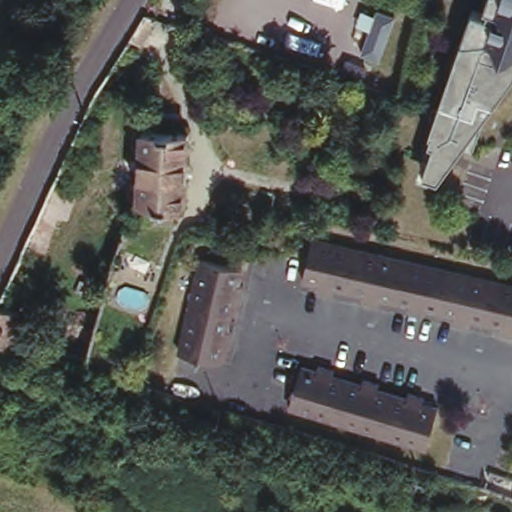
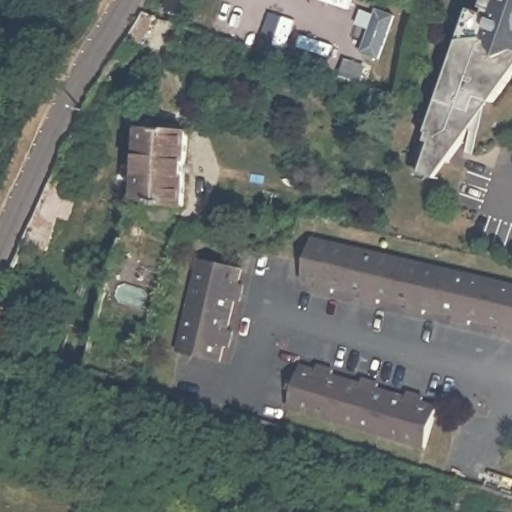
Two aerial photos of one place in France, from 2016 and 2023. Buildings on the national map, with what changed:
unchanged [(440,145),(434,143),(440,120),(433,118),(435,108),(444,110),(458,57),(465,59),(470,41),(465,39),(474,9),(487,13),(490,7),(486,6),(488,0),(512,0),(512,84),(505,93),(478,137),(465,157),(457,183),(432,176),(439,149),(440,145)]
unchanged [(152,25),(141,41),(130,33),(146,10),(153,12),(152,25)]
unchanged [(330,51),(353,58),(348,75),(325,67),(330,51)]
unchanged [(186,207),(133,205),(137,130),(190,132),(186,207)]
unchanged [(90,172),(67,220),(56,215),(42,247),(27,241),(46,198),(64,160),(90,172)]
unchanged [(315,241),(512,283),(512,332),(503,330),(505,323),(466,315),(465,322),(448,318),(450,311),(410,302),(409,310),(394,307),(395,300),(355,292),(355,299),(338,296),(340,289),(307,283),(315,241)]
unchanged [(204,259),(244,269),(240,285),(246,287),(241,304),(235,302),(228,330),(233,332),(229,348),(224,347),(220,362),(180,351),(204,259)]
unchanged [(10,344),(0,341),(0,300),(20,310),(10,344)]
unchanged [(295,375),(313,378),(313,371),(331,373),(331,380),(360,385),(360,378),(380,381),(378,388),(407,392),(408,386),(426,389),(425,395),(440,397),(433,439),(290,417),(295,375)]

